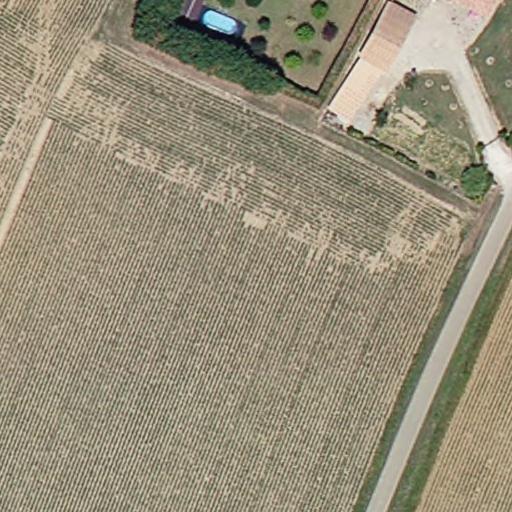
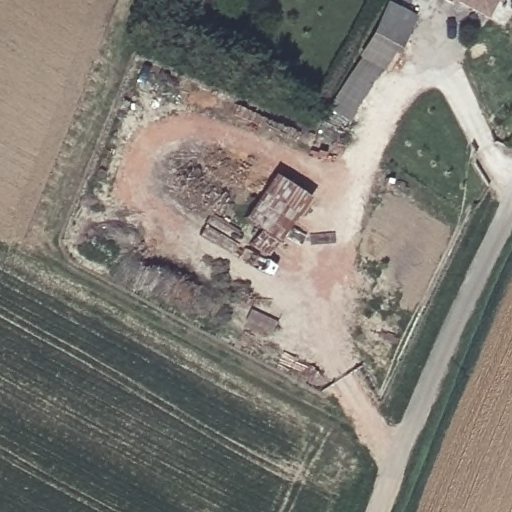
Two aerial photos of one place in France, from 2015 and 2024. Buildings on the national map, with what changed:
unchanged [(394,0),(396,0),(418,13),(390,64),(366,51),(394,0)]
unchanged [(452,4),(444,0),(455,0),(452,4)]
unchanged [(486,17),(457,0),(496,0),(486,17)]
new [(244,216),(275,172),(308,197),(267,254),(251,243),(262,228),(244,216)]

